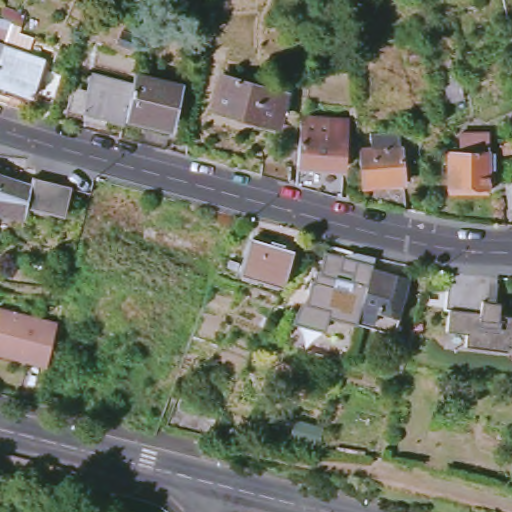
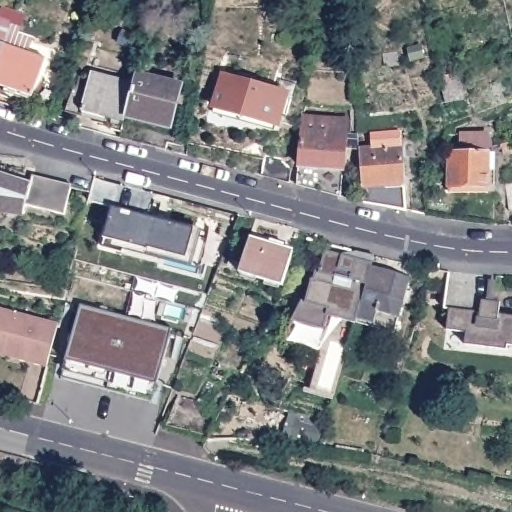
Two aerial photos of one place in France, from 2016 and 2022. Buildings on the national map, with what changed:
unchanged [(15,17),(2,12),(6,3),(19,7),(15,17)]
unchanged [(7,41),(0,60),(0,21),(12,25),(7,41)]
unchanged [(11,85),(0,81),(0,60),(7,41),(45,55),(27,106),(7,99),(11,85)]
unchanged [(172,129),(125,116),(122,122),(80,112),(90,69),(130,80),(137,67),(184,81),(172,129)]
unchanged [(215,106),(224,76),(280,92),(271,122),(215,106)]
unchanged [(298,170),(302,132),(304,104),(352,109),(344,182),(298,170)]
unchanged [(402,131),(407,186),(362,192),(355,147),(370,145),(370,132),(402,131)]
unchanged [(488,152),(488,160),(493,161),(493,185),(448,186),(448,152),(453,152),(454,146),(453,131),(482,131),(483,145),(483,152),(488,152)]
unchanged [(265,161),(271,135),(282,137),(286,149),(295,155),(292,168),(265,161)]
unchanged [(33,172),(72,182),(65,211),(27,202),(25,210),(0,204),(0,170),(32,179),(33,172)]
new [(192,265),(102,239),(113,206),(117,189),(155,200),(153,213),(201,227),(200,269),(192,265)]
unchanged [(240,274),(250,240),(293,251),(283,286),(240,274)]
unchanged [(357,317),(350,340),(297,323),(325,248),(373,261),(412,272),(409,282),(395,329),(357,317)]
unchanged [(492,274),(486,311),(512,315),(512,345),(499,343),(498,348),(457,341),(459,328),(439,325),(442,304),(437,303),(444,266),(492,274)]
new [(66,360),(82,304),(172,329),(157,383),(154,395),(64,371),(66,360)]
unchanged [(14,359),(15,353),(0,350),(0,312),(57,326),(45,367),(14,359)]
unchanged [(217,431),(170,417),(180,387),(231,400),(217,431)]

